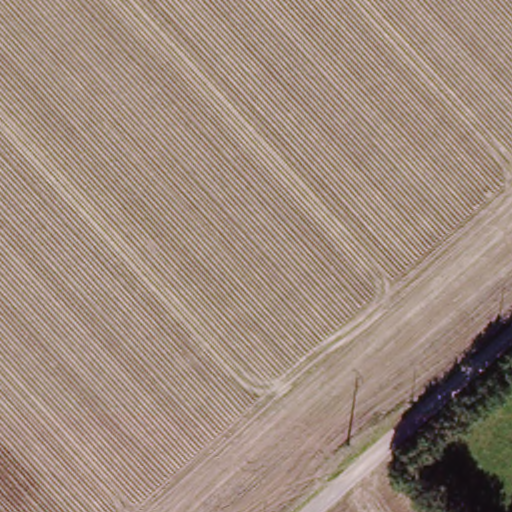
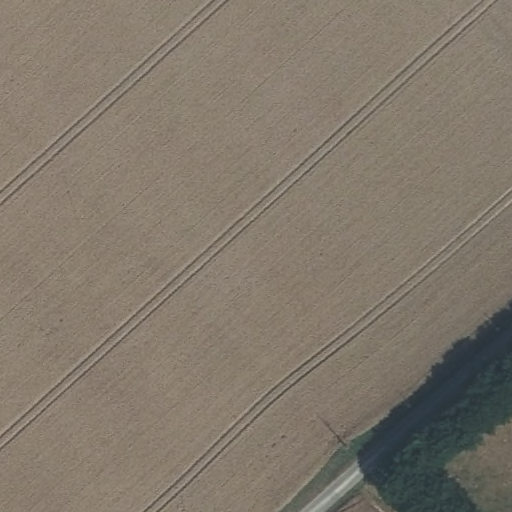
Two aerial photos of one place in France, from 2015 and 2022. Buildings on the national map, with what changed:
[]

